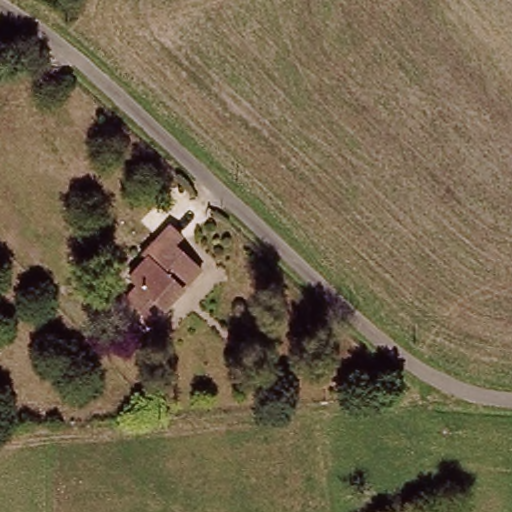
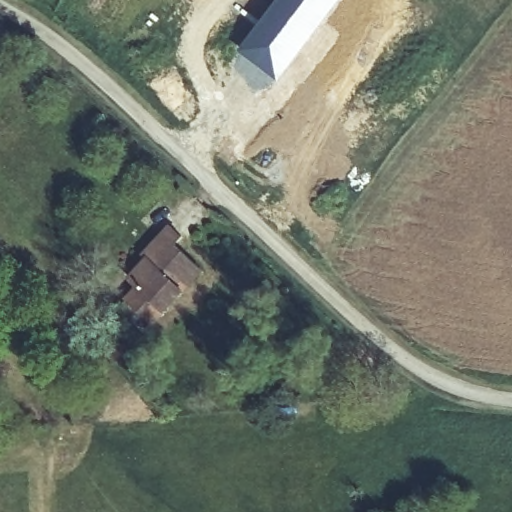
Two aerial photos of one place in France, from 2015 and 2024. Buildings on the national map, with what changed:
new [(276,0),(341,0),(277,81),(237,50),(276,0)]
unchanged [(175,282),(167,291),(173,299),(163,310),(150,299),(142,306),(127,293),(135,285),(126,276),(144,257),(139,253),(168,222),(182,235),(172,245),(200,270),(187,284),(175,282)]

